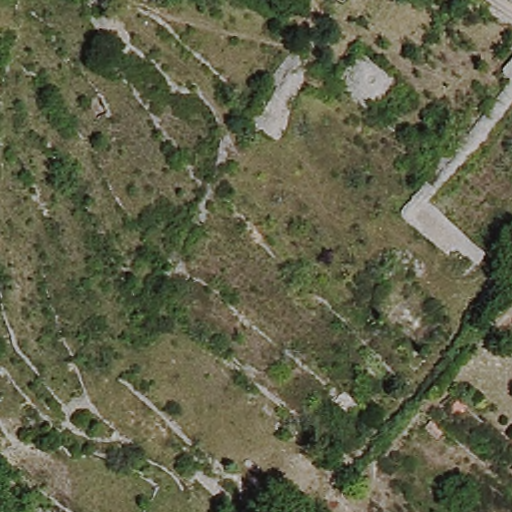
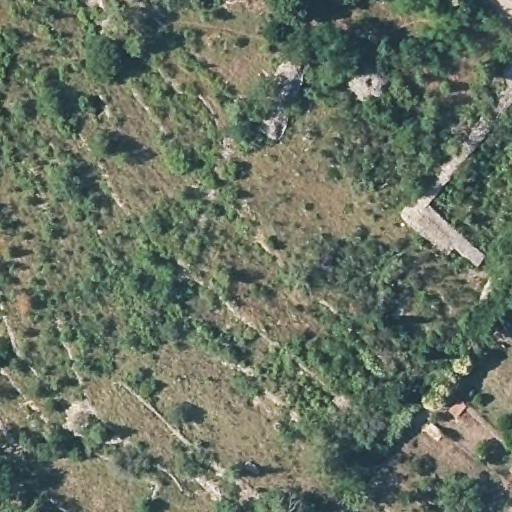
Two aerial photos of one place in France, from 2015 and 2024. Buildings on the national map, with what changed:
unchanged [(512,52),(512,76),(510,78),(497,66),(512,52)]

